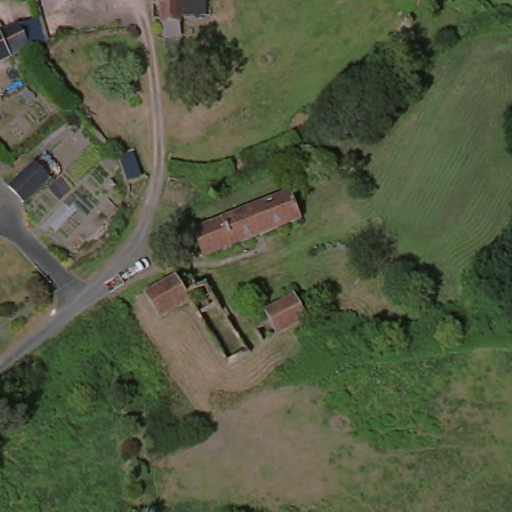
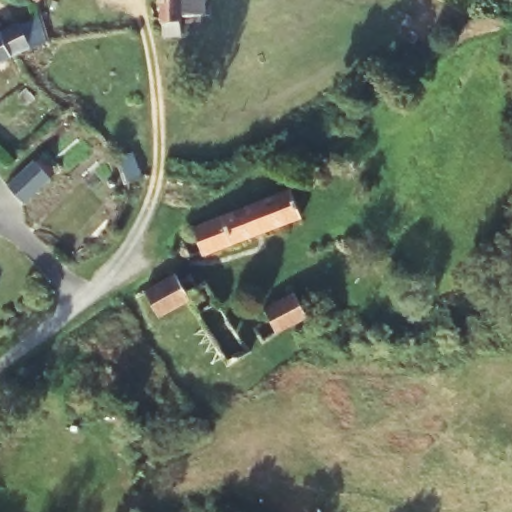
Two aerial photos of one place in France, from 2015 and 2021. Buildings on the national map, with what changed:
unchanged [(41,0),(32,10),(23,0),(41,0)]
unchanged [(159,28),(152,27),(151,6),(158,6),(158,0),(204,0),(204,25),(180,24),(181,45),(164,44),(159,28)]
unchanged [(12,30),(36,19),(45,43),(26,53),(7,63),(2,65),(0,66),(0,36),(9,31),(12,30)]
unchanged [(22,212),(6,196),(31,170),(47,186),(22,212)]
unchanged [(202,264),(200,260),(196,248),(191,233),(290,200),(300,226),(202,264)]
unchanged [(187,286),(194,299),(189,301),(162,315),(145,286),(177,269),(187,286)]
unchanged [(307,327),(275,342),(267,326),(262,315),(293,300),(307,327)]

